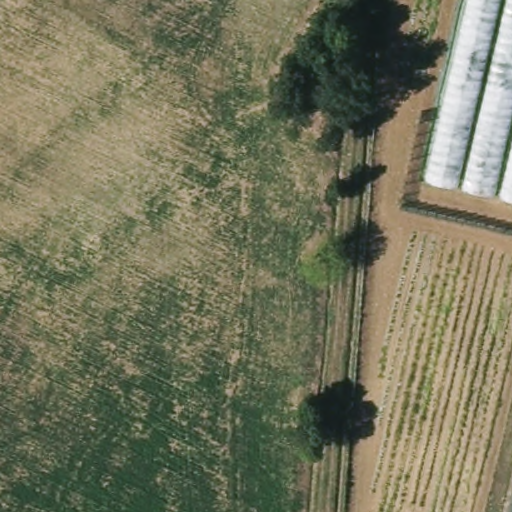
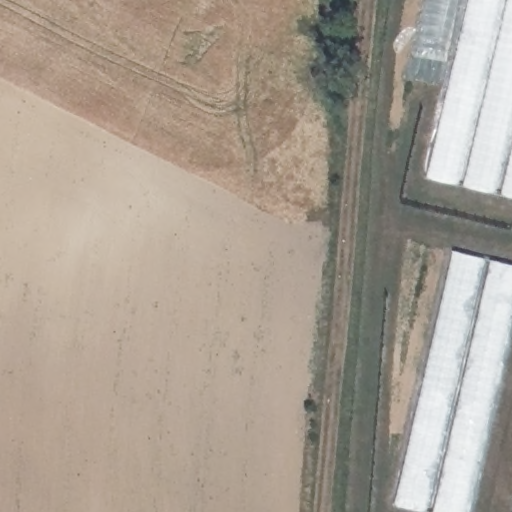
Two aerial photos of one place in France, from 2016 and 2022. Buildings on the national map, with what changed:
unchanged [(512,197),(428,179),(469,0),(512,0),(512,197)]
new [(420,512),(394,506),(452,252),(512,267),(512,317),(468,512),(420,512)]

